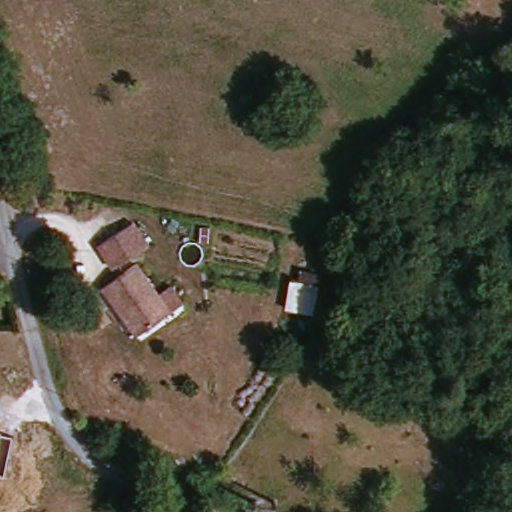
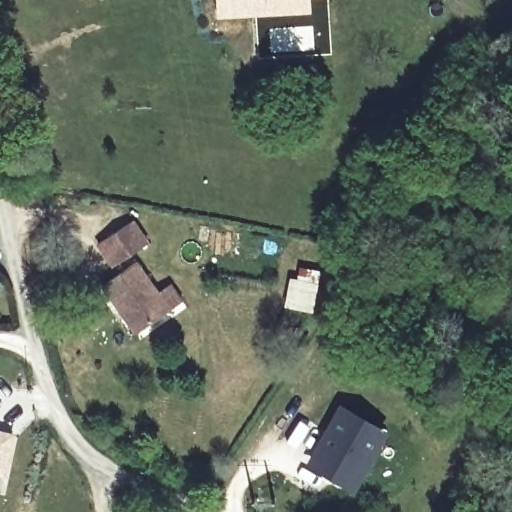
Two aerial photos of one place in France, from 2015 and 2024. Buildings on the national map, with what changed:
new [(215,16),(214,0),(307,0),(308,11),(293,11),(215,16)]
unchanged [(149,238),(120,258),(107,238),(136,219),(149,238)]
unchanged [(159,288),(169,282),(174,288),(174,289),(175,289),(181,299),(138,328),(105,278),(138,255),(159,288)]
new [(341,414),(378,435),(349,483),(314,462),(341,414)]
unchanged [(3,475),(0,474),(0,431),(11,434),(3,475)]

